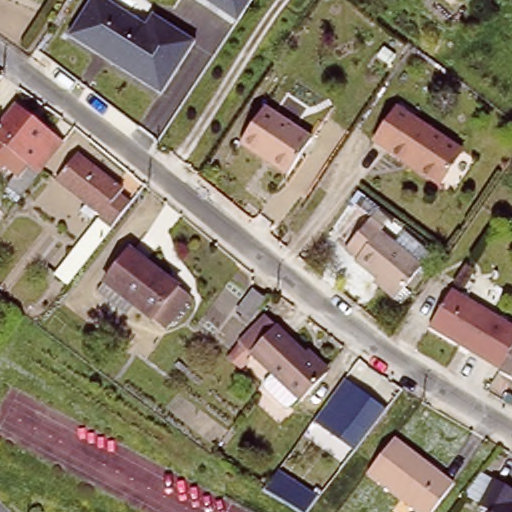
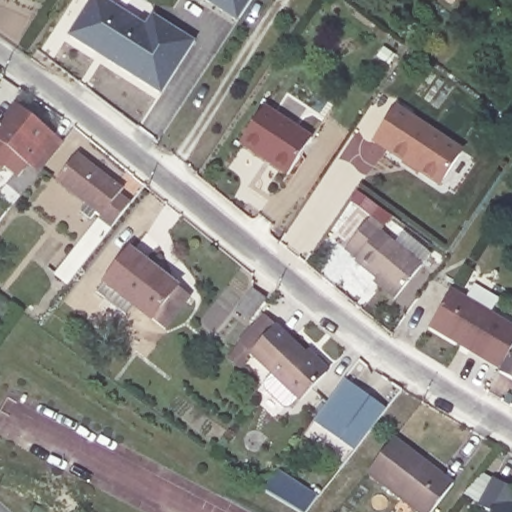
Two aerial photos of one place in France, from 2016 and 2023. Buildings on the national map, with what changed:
unchanged [(143,17),(147,12),(197,40),(162,98),(61,34),(83,0),(112,0),(143,17)]
unchanged [(237,20),(207,0),(253,0),(237,20)]
unchanged [(370,137),(392,104),(457,147),(435,179),(370,137)]
unchanged [(8,185),(26,163),(3,144),(0,148),(0,124),(15,105),(63,143),(22,196),(8,185)]
unchanged [(312,140),(288,175),(242,143),(265,108),(312,140)]
unchanged [(56,270),(102,211),(97,207),(91,214),(82,207),(87,199),(57,176),(77,151),(118,181),(123,185),(118,191),(130,200),(108,228),(91,250),(68,279),(56,270)]
unchanged [(395,300),(379,287),(382,283),(357,261),(358,260),(346,249),(371,219),(383,229),(380,232),(423,268),(395,300)]
unchanged [(165,329),(133,306),(126,315),(95,292),(128,249),(190,296),(165,329)]
unchanged [(250,319),(237,311),(253,289),(265,298),(250,319)]
unchanged [(450,295),(512,331),(512,384),(498,377),(500,374),(430,331),(450,295)]
unchanged [(305,407),(255,358),(246,347),(272,321),(281,331),(330,380),(305,407)]
unchanged [(355,451),(313,421),(344,380),(386,411),(355,451)]
unchanged [(432,512),(418,512),(367,473),(394,439),(453,485),(432,512)]
unchanged [(479,502),(463,491),(480,469),(493,477),(494,475),(512,486),(512,496),(509,501),(512,503),(512,512),(489,512),(490,510),(479,502)]
unchanged [(268,482),(310,507),(306,512),(300,512),(262,490),(268,482)]

